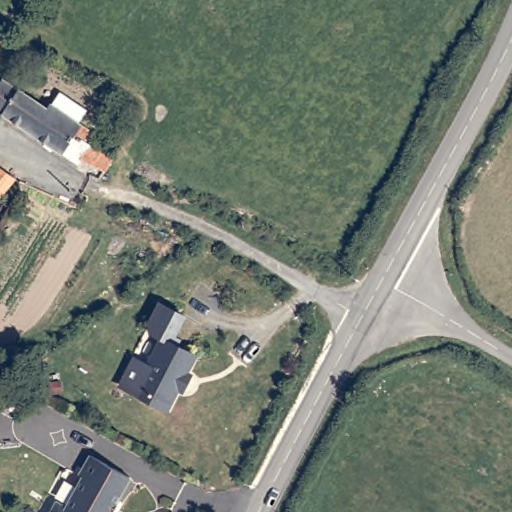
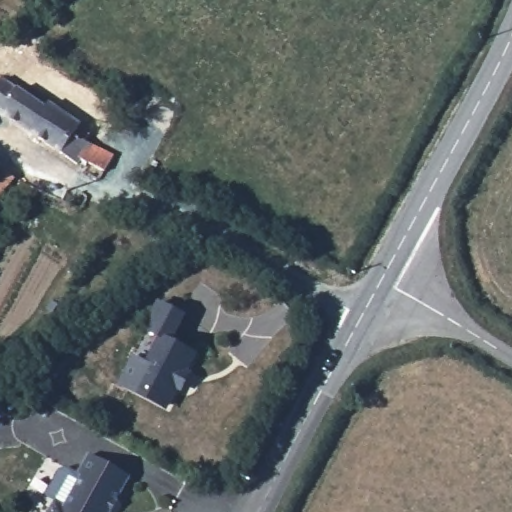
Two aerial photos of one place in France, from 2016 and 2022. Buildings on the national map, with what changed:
unchanged [(0,32),(0,24),(3,26),(0,32)]
unchanged [(2,81),(46,112),(59,97),(84,112),(85,145),(110,159),(104,170),(88,166),(80,159),(73,167),(0,119),(0,83),(2,81)]
unchanged [(11,177),(4,187),(0,191),(0,168),(11,177)]
unchanged [(159,339),(157,337),(170,316),(191,329),(180,349),(187,354),(184,360),(201,371),(190,387),(196,392),(188,403),(183,400),(172,417),(126,392),(140,368),(159,339)]
unchanged [(115,502),(120,508),(117,512),(51,512),(57,503),(68,508),(84,484),(79,480),(92,460),(127,482),(115,502)]

